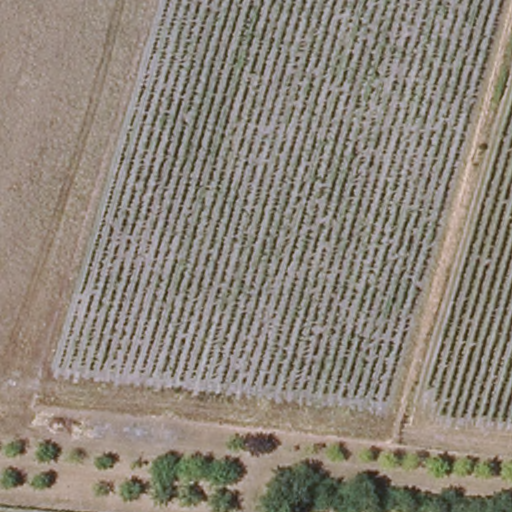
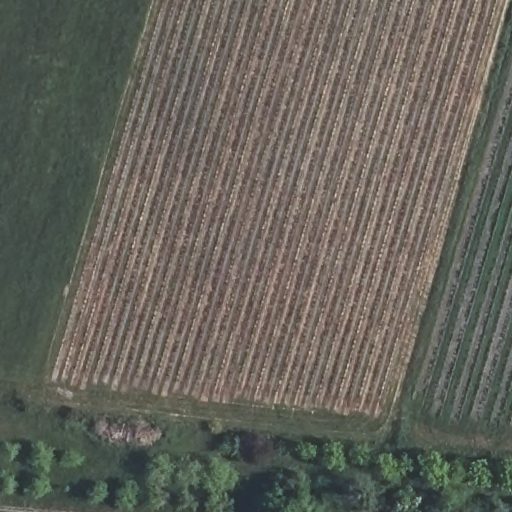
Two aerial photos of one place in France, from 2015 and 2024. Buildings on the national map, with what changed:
[]

